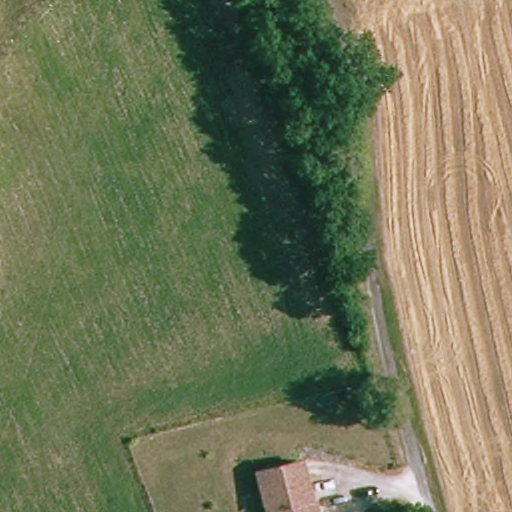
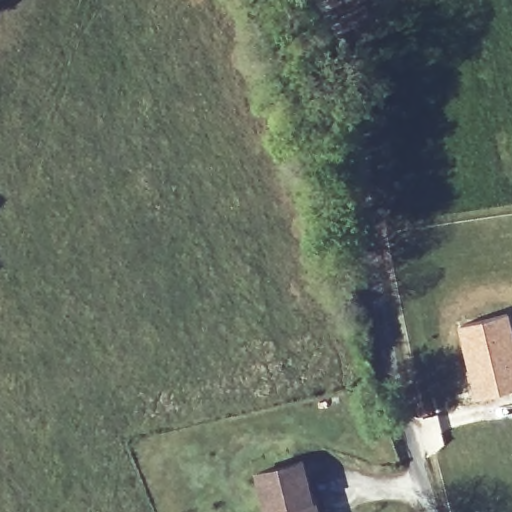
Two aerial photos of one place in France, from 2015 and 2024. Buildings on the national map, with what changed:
new [(508,315),(512,332),(512,388),(476,398),(459,327),(508,315)]
unchanged [(306,464),(318,512),(268,512),(259,476),(306,464)]

